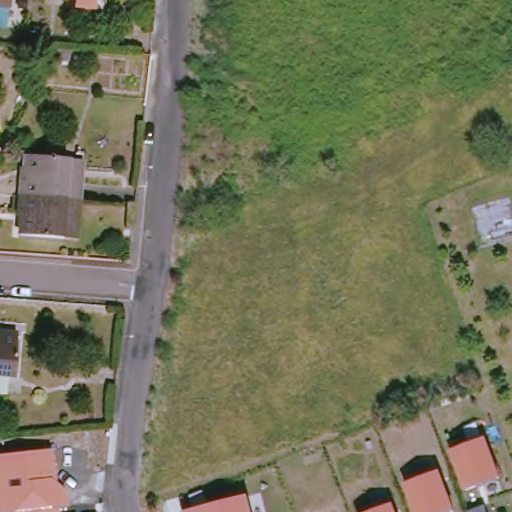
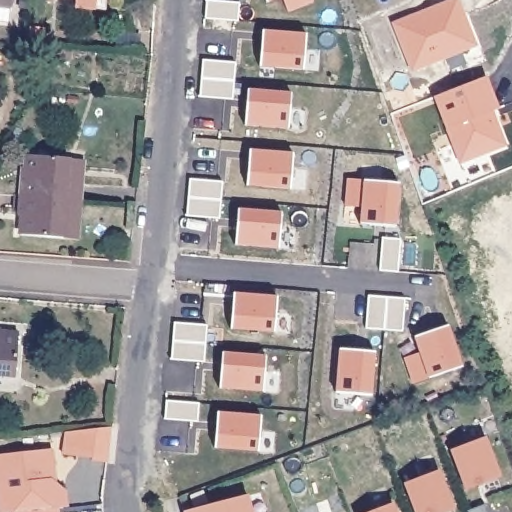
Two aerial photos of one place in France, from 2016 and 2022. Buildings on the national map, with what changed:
unchanged [(14,16),(0,15),(0,0),(16,0),(14,16)]
new [(266,4),(265,0),(276,0),(266,4)]
new [(314,4),(288,13),(283,0),(312,0),(314,4)]
new [(454,0),(458,0),(464,17),(458,19),(471,53),(415,74),(395,23),(454,0)]
new [(206,1),(239,4),(238,22),(205,19),(206,1)]
new [(262,32),(307,36),(304,71),(259,67),(262,32)]
new [(203,60),(236,63),(233,99),(199,98),(203,60)]
new [(485,77),(498,109),(491,111),(504,145),(459,162),(434,97),(485,77)]
new [(247,91),(291,95),(288,129),(243,125),(247,91)]
new [(249,150),(293,154),(290,189),(246,185),(249,150)]
unchanged [(29,201),(30,183),(34,181),(37,161),(78,165),(75,203),(29,201)]
new [(188,180),(223,182),(219,219),(185,216),(188,180)]
new [(348,180),(399,184),(396,227),(360,224),(361,207),(346,206),(348,180)]
unchanged [(30,241),(33,221),(28,221),(29,201),(75,203),(72,244),(30,241)]
new [(238,209),(281,213),(278,249),(234,245),(238,209)]
new [(383,238),(401,239),(398,273),(379,271),(383,238)]
new [(233,294),(277,297),(274,332),(230,329),(233,294)]
new [(368,296),(405,299),(402,332),(366,329),(368,296)]
new [(174,323),(207,325),(204,362),(171,360),(174,323)]
new [(419,354),(414,338),(447,326),(462,370),(413,387),(404,359),(419,354)]
unchanged [(3,329),(3,335),(24,336),(20,377),(0,375),(0,328),(3,329)]
new [(339,348),(374,354),(368,397),(333,392),(339,348)]
new [(221,353),(266,356),(263,392),(218,388),(221,353)]
new [(166,401),(198,404),(197,421),(164,419),(166,401)]
unchanged [(486,435),(502,477),(463,493),(448,449),(486,435)]
unchanged [(56,481),(66,491),(68,507),(58,509),(58,512),(12,512),(11,511),(5,512),(0,512),(0,455),(53,450),(56,481)]
unchanged [(453,507),(439,512),(413,512),(402,481),(439,467),(453,507)]
unchanged [(182,512),(181,510),(248,492),(253,512),(182,512)]
unchanged [(398,512),(364,512),(394,501),(398,512)]

